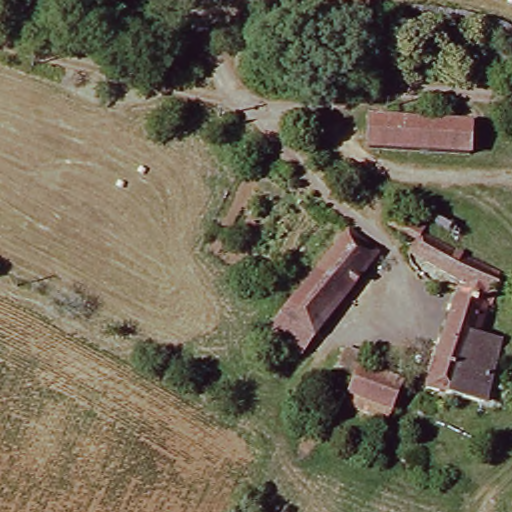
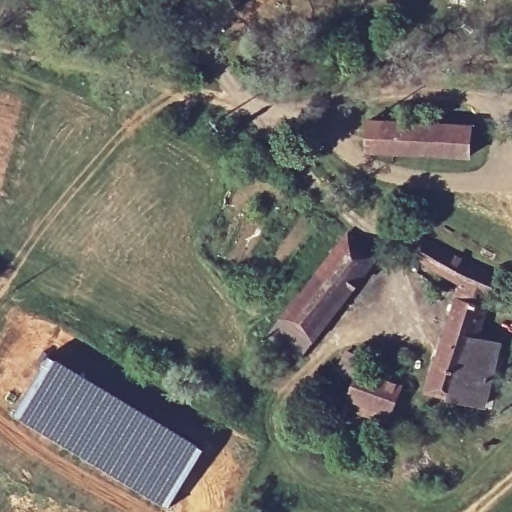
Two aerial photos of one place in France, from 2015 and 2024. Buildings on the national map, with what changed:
unchanged [(370,118),(469,125),(467,157),(367,150),(370,118)]
unchanged [(485,309),(474,337),(500,345),(482,409),(428,391),(460,284),(410,255),(413,245),(388,231),(395,214),(427,230),(425,236),(498,279),(488,310),(485,309)]
unchanged [(270,340),(282,322),(344,235),(375,255),(314,344),(301,362),(270,340)]
new [(51,354),(90,375),(205,447),(167,508),(14,416),(51,354)]
unchanged [(360,385),(344,377),(351,358),(373,367),(368,377),(404,391),(390,427),(350,414),(360,385)]

